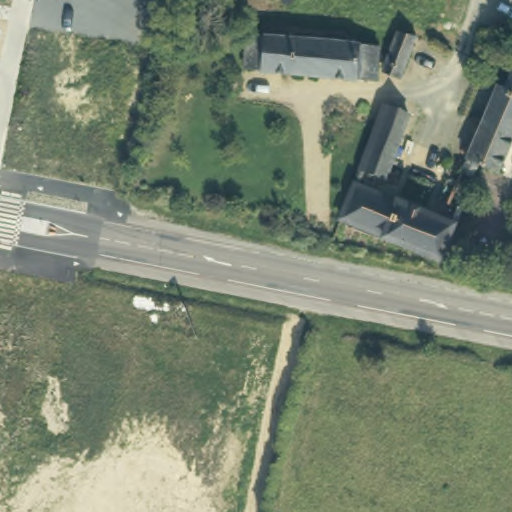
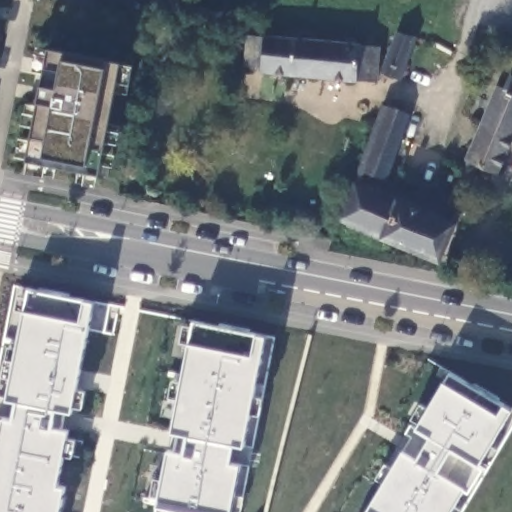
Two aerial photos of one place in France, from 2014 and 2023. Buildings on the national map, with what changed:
unchanged [(338,36),(352,37),(352,45),(373,47),(372,82),(262,72),(244,69),(246,35),(266,37),(337,44),(338,36)]
unchanged [(401,80),(383,74),(397,36),(414,41),(401,80)]
unchanged [(123,62),(101,173),(28,159),(40,100),(42,84),(51,47),(123,62)]
unchanged [(512,134),(496,169),(477,162),(471,176),(460,172),(497,87),(505,90),(510,77),(512,77),(512,134)]
unchanged [(350,168),(373,106),(399,117),(376,179),(350,168)]
unchanged [(343,185),(344,182),(444,218),(428,257),(330,218),(343,185)]
new [(4,416),(15,418),(18,402),(7,398),(26,309),(30,288),(93,302),(72,412),(55,408),(51,427),(67,430),(57,485),(64,487),(59,512),(0,512),(0,435),(4,416)]
new [(245,443),(235,442),(231,462),(240,463),(230,512),(158,512),(159,505),(169,450),(185,453),(188,433),(173,431),(190,342),(194,321),(259,334),(268,336),(245,443)]
new [(402,448),(416,427),(442,381),(451,371),(506,405),(512,408),(512,409),(452,512),(365,512),(366,511),(402,448)]

